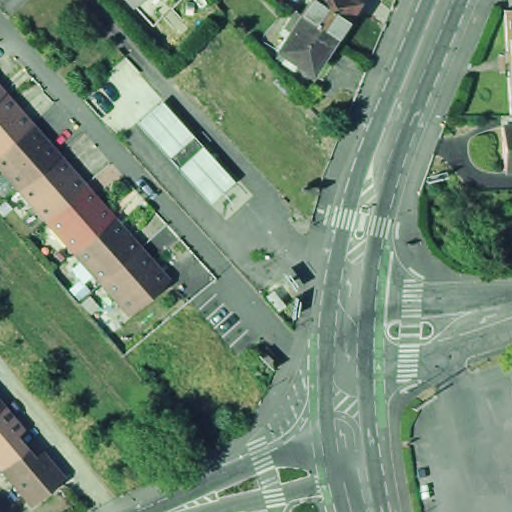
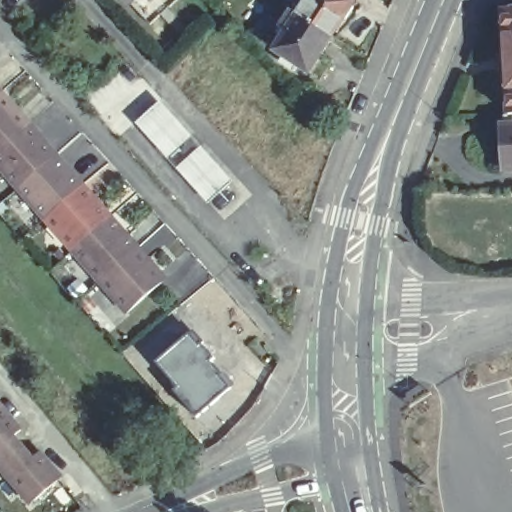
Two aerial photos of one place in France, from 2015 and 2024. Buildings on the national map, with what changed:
unchanged [(130,4),(126,0),(134,0),(130,4)]
unchanged [(283,55),(274,49),(283,35),(277,31),(291,10),(292,9),(297,13),(306,0),(353,0),(350,5),(353,6),(345,18),(343,16),(331,35),(308,71),(292,60),(288,66),(280,60),(283,55)]
unchanged [(502,8),(512,8),(512,61),(505,61),(502,8)]
unchanged [(505,61),(512,61),(512,114),(508,115),(505,61)]
unchanged [(1,101),(5,97),(18,112),(16,114),(26,125),(0,148),(0,99),(1,101)]
unchanged [(208,196),(178,161),(175,163),(165,152),(168,150),(137,115),(155,100),(186,134),(188,132),(198,143),(196,145),(227,180),(208,196)]
unchanged [(500,126),(507,126),(507,115),(508,115),(512,114),(512,170),(503,170),(500,126)]
unchanged [(0,167),(0,148),(26,125),(36,136),(37,134),(51,149),(47,152),(52,158),(18,187),(0,167)]
unchanged [(18,187),(52,158),(56,163),(60,160),(73,175),(71,176),(81,187),(45,219),(18,187)]
unchanged [(45,219),(81,187),(90,199),(92,196),(105,211),(102,215),(106,220),(72,250),(45,219)]
unchanged [(72,250),(106,220),(111,225),(115,222),(128,237),(126,239),(136,250),(100,281),(72,250)]
unchanged [(127,312),(100,281),(136,250),(145,260),(147,259),(160,274),(157,277),(161,282),(127,312)]
new [(190,320),(240,386),(196,426),(142,358),(190,320)]
unchanged [(5,400),(0,404),(0,394),(5,400)]
unchanged [(0,456),(0,404),(5,400),(26,425),(19,430),(28,442),(5,462),(0,456)]
unchanged [(38,453),(45,447),(66,472),(35,498),(5,462),(28,442),(38,453)]

